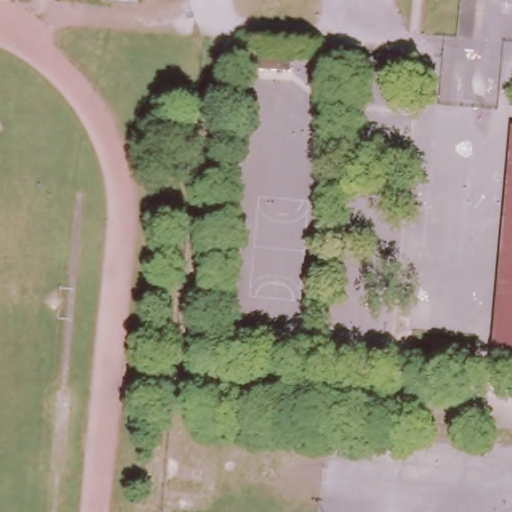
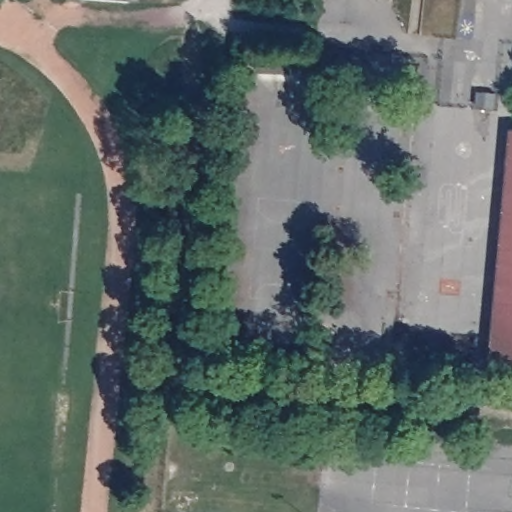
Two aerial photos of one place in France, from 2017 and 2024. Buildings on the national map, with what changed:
unchanged [(492,361),(512,145),(512,362),(492,361)]

